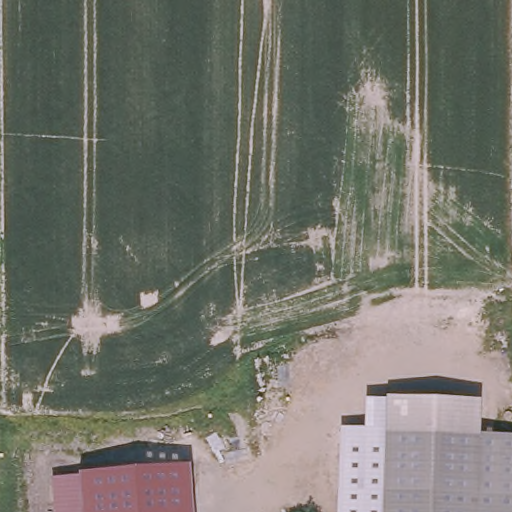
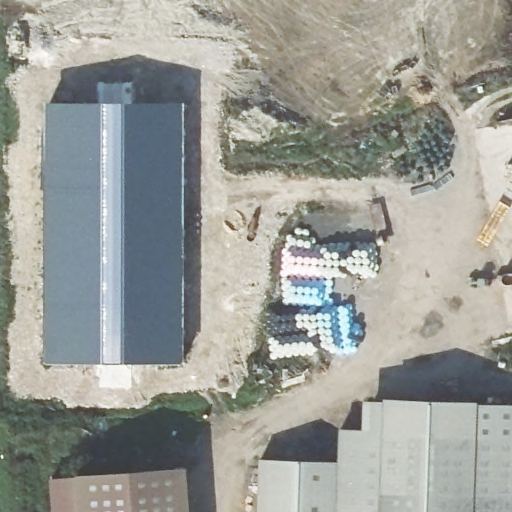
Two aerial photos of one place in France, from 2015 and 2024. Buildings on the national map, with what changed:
new [(185,363),(45,361),(46,100),(186,103),(185,363)]
new [(340,461),(340,426),(363,428),(364,399),(386,400),(386,397),(512,403),(512,512),(259,512),(261,457),(340,461)]
demolished [(391,435),(499,438),(512,439),(512,512),(388,512),(389,506),(391,435)]
unchanged [(188,466),(192,512),(53,512),(50,479),(78,475),(188,466)]

